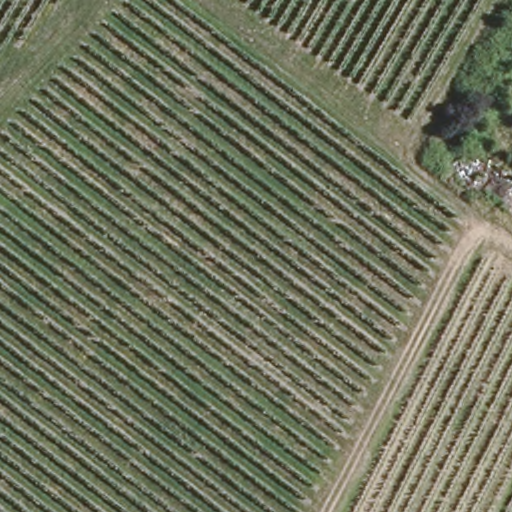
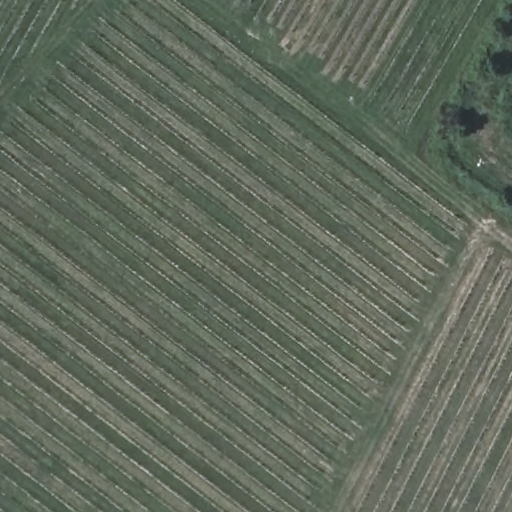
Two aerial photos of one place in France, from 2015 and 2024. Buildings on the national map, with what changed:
[]

